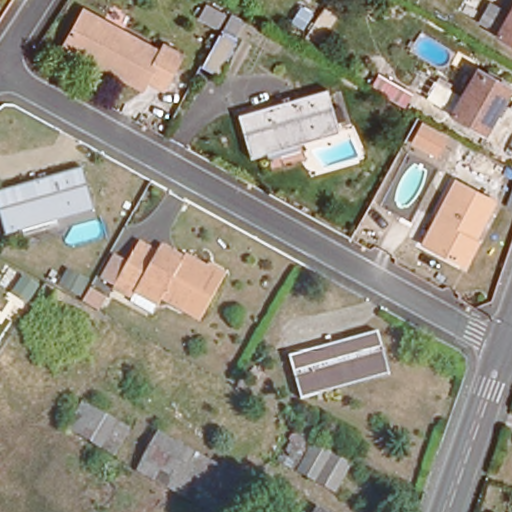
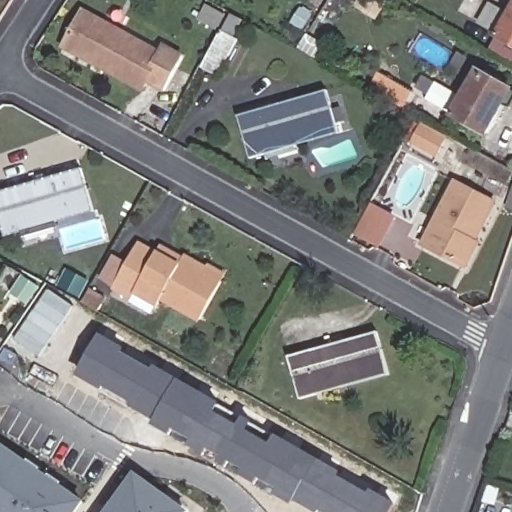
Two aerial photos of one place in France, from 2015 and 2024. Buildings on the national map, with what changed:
unchanged [(228,15),(220,30),(200,19),(209,4),(228,15)]
unchanged [(512,10),(512,44),(497,35),(512,10)]
unchanged [(160,52),(164,47),(182,57),(164,90),(146,80),(142,89),(104,69),(104,66),(64,43),(82,11),(160,52)]
unchanged [(236,39),(217,74),(203,66),(222,32),(236,39)]
unchanged [(479,71),(510,90),(484,134),(451,115),(427,100),(439,80),(464,95),(479,71)]
unchanged [(376,84),(383,72),(416,90),(409,102),(376,84)]
unchanged [(295,146),(250,159),(238,117),(325,91),(335,127),(337,132),(295,146)]
new [(420,124),(445,137),(435,155),(411,141),(420,124)]
unchanged [(49,223),(5,237),(0,219),(0,193),(80,170),(89,202),(92,211),(49,223)]
unchanged [(455,181),(494,200),(464,263),(425,245),(455,181)]
unchanged [(512,202),(511,202),(512,200),(512,202)]
unchanged [(112,283),(132,246),(135,240),(155,251),(159,244),(180,255),(204,267),(207,262),(224,271),(221,277),(201,315),(163,295),(159,301),(156,307),(133,294),(112,283)]
unchanged [(317,393),(300,398),(289,356),(377,332),(386,367),(388,375),(317,393)]
new [(121,350),(118,355),(147,370),(150,366),(175,381),(337,472),(335,476),(365,492),(366,488),(391,502),(386,512),(322,512),(316,509),(314,512),(313,512),(291,500),(289,505),(149,425),(152,422),(127,407),(129,403),(99,387),(97,390),(75,377),(98,337),(121,350)]
demolished [(108,456),(62,430),(78,402),(124,430),(108,456)]
demolished [(206,512),(133,471),(154,432),(261,492),(251,512),(206,512)]
new [(82,502),(75,512),(0,512),(0,445),(82,502)]
demolished [(349,466),(334,492),(299,472),(313,446),(349,466)]
new [(109,512),(136,475),(186,511),(186,512),(109,512)]
demolished [(317,512),(318,509),(324,512),(317,512)]

